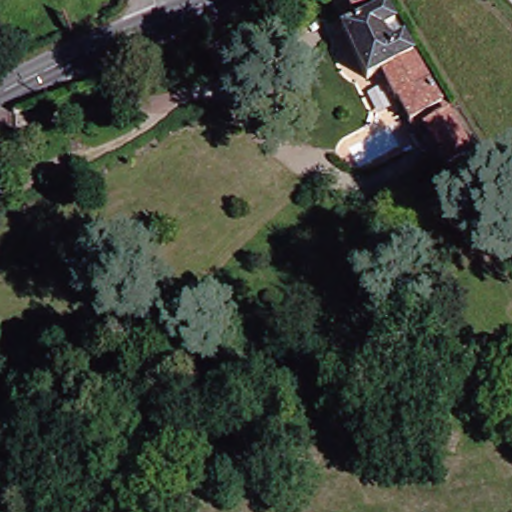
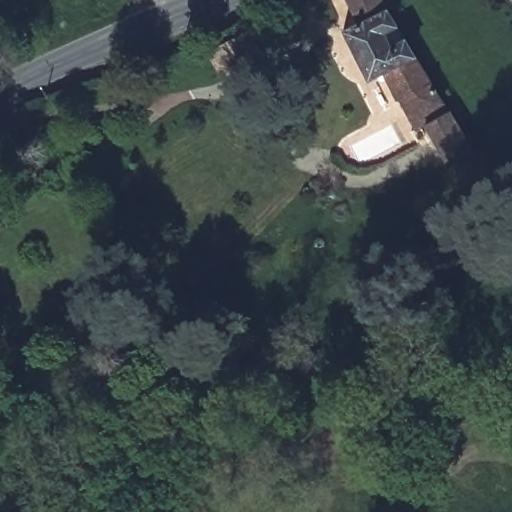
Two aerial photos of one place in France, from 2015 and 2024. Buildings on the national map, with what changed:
unchanged [(470,156),(452,166),(425,118),(415,124),(386,72),(373,80),(346,31),(363,21),(351,0),(384,0),(470,156)]
unchanged [(296,95),(255,111),(234,65),(230,40),(255,31),(263,51),(274,49),(296,95)]

